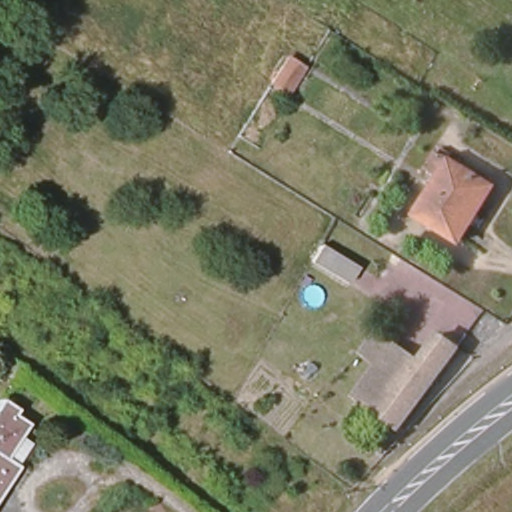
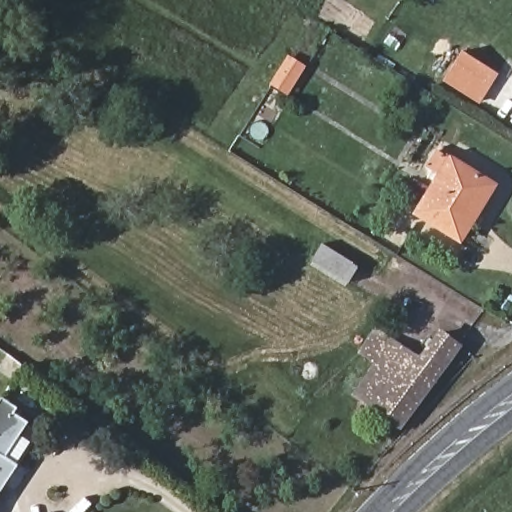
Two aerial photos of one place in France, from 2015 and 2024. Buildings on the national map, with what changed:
unchanged [(510,22),(512,19),(512,24),(510,22)]
new [(442,81),(463,49),(499,73),(479,105),(442,81)]
unchanged [(473,224),(463,240),(417,211),(451,155),(490,180),(497,184),(473,224)]
unchanged [(322,248),(356,268),(346,286),(311,265),(322,248)]
unchanged [(353,392),(379,356),(363,344),(377,327),(417,358),(438,332),(458,347),(397,427),(353,392)]
unchanged [(27,469),(17,486),(9,481),(0,495),(0,406),(4,401),(25,412),(21,419),(40,432),(21,463),(27,469)]

